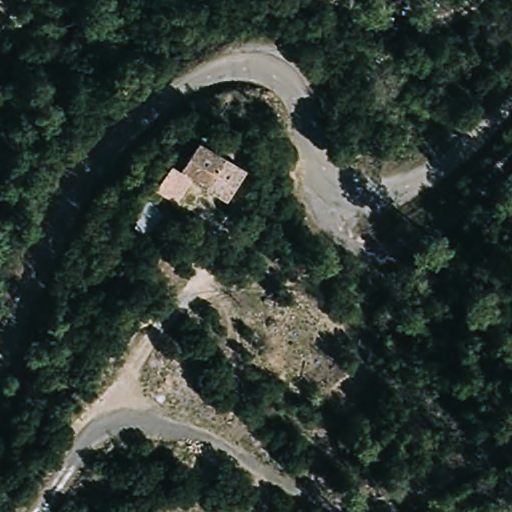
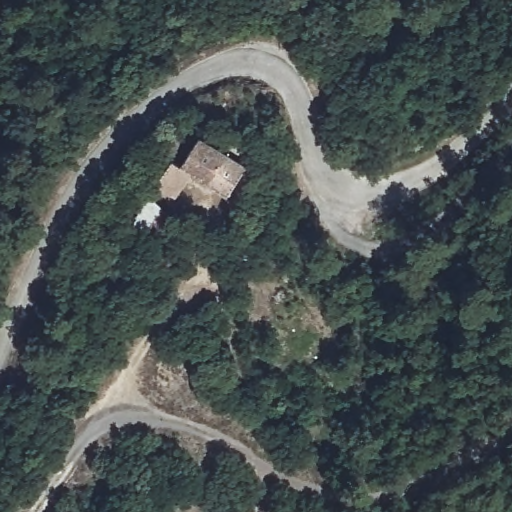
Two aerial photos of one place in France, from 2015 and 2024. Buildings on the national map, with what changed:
unchanged [(181,170),(201,139),(209,125),(239,141),(229,156),(211,187),(181,170)]

